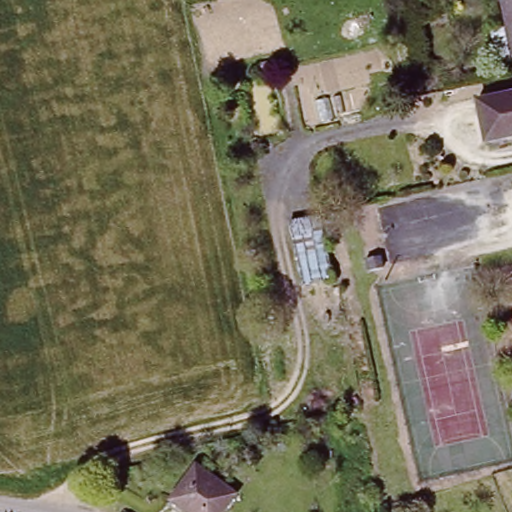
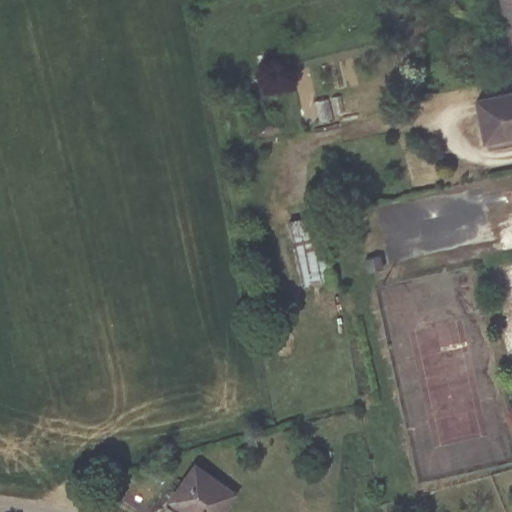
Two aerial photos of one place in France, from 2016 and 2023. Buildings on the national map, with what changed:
unchanged [(487,140),(479,101),(512,94),(512,135),(487,140)]
unchanged [(313,216),(329,278),(302,284),(285,222),(313,216)]
unchanged [(370,260),(372,271),(358,274),(355,262),(370,260)]
unchanged [(251,445),(254,450),(247,453),(244,448),(251,445)]
unchanged [(202,465),(238,492),(223,512),(191,512),(191,511),(175,499),(202,465)]

